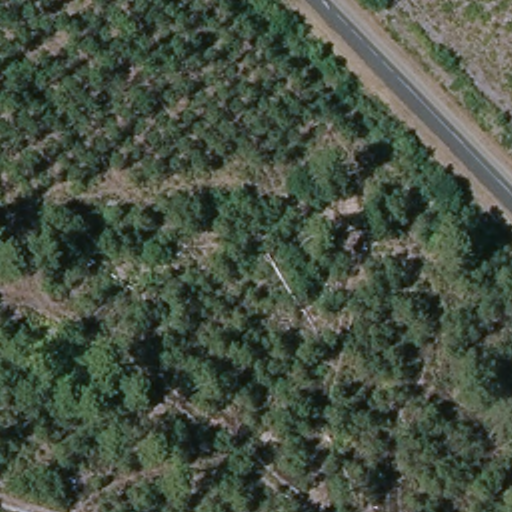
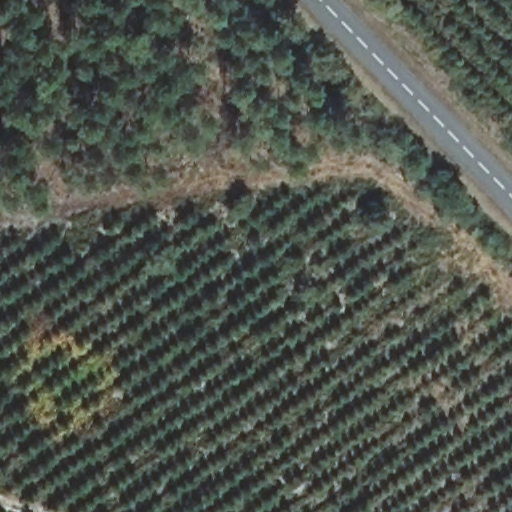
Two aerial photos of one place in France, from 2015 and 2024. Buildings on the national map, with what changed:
[]

